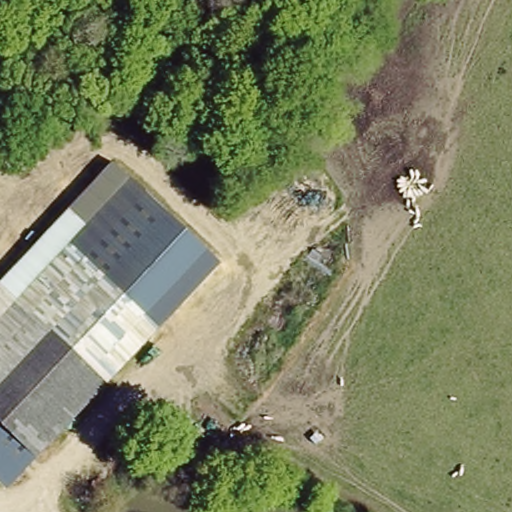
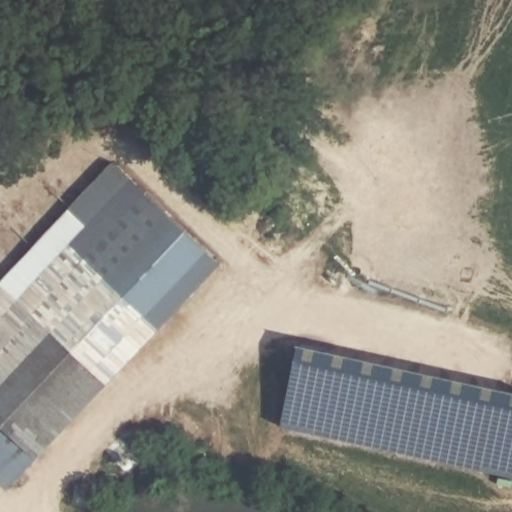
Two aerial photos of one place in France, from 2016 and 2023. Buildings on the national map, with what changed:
unchanged [(113,160),(218,265),(181,304),(95,217),(87,225),(68,207),(113,160)]
unchanged [(0,314),(18,295),(0,278),(0,277),(68,207),(87,225),(95,217),(181,304),(37,457),(0,423),(0,314)]
unchanged [(0,314),(0,278),(18,295),(0,314)]
new [(302,343),(512,391),(512,477),(283,426),(302,343)]
unchanged [(6,490),(0,484),(0,424),(37,457),(6,490)]

